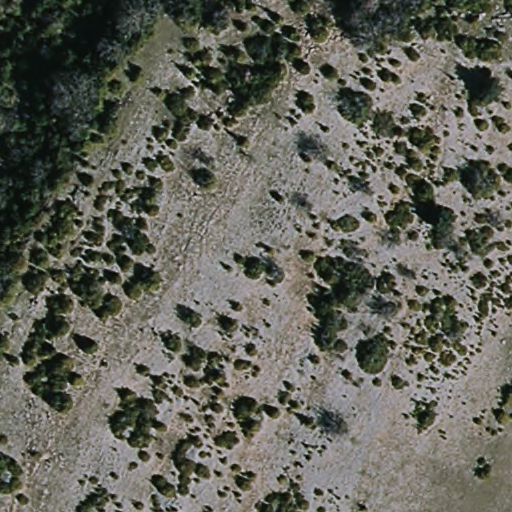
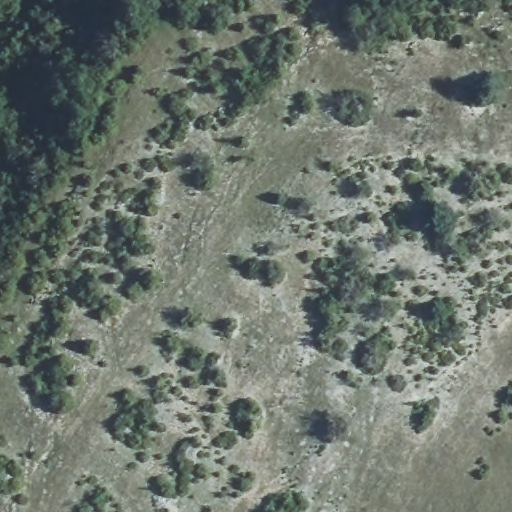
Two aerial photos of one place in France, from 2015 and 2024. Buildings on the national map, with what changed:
[]

